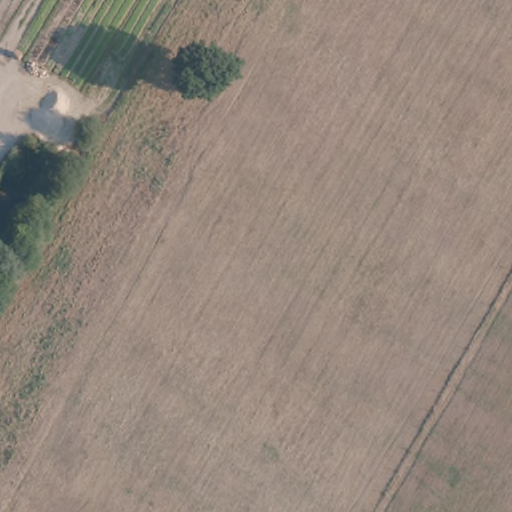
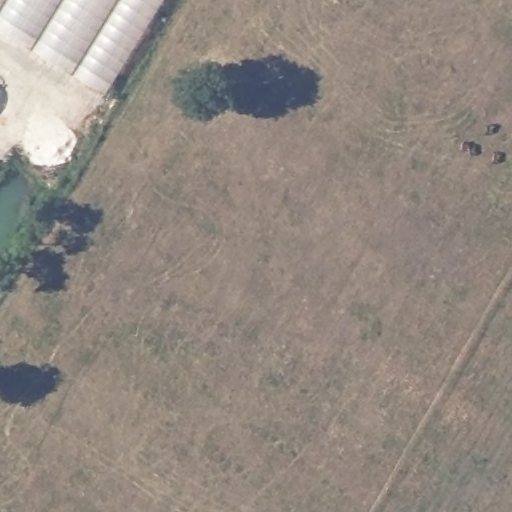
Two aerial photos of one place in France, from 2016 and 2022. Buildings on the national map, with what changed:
new [(164,0),(106,94),(0,29),(0,0),(164,0)]

